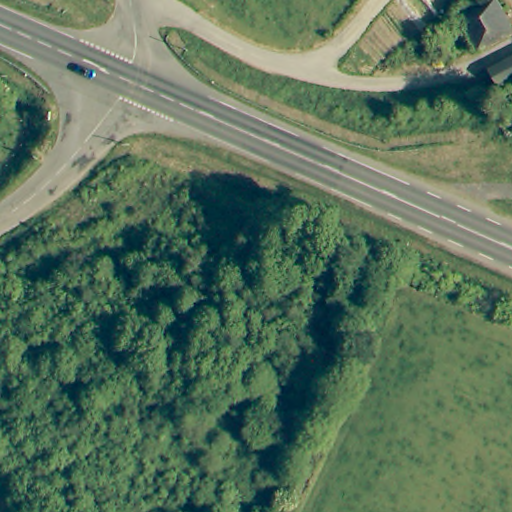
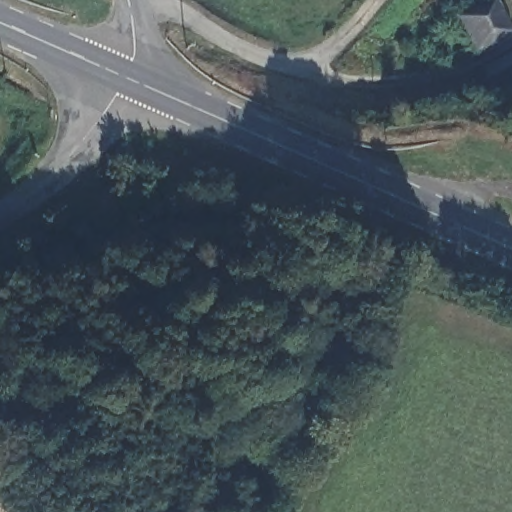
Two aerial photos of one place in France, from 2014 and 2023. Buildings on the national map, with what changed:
unchanged [(506,32),(472,51),(456,18),(489,0),(490,0),(506,32)]
unchanged [(512,52),(512,75),(492,85),(482,67),(512,52)]
unchanged [(232,231),(226,202),(254,197),(259,225),(232,231)]

